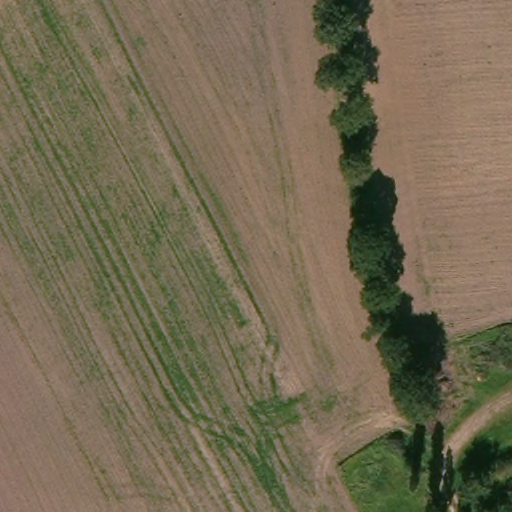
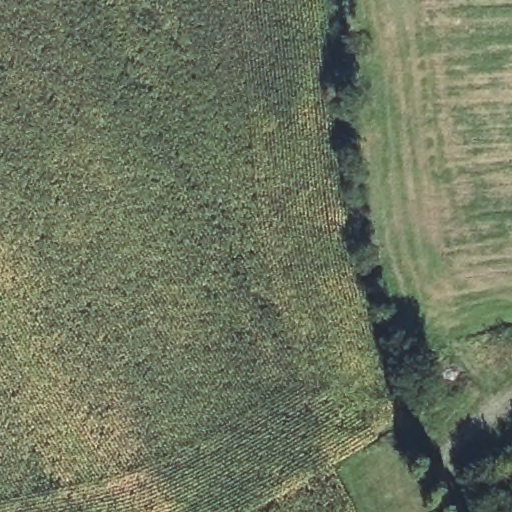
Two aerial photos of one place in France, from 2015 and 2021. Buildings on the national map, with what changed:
[]

